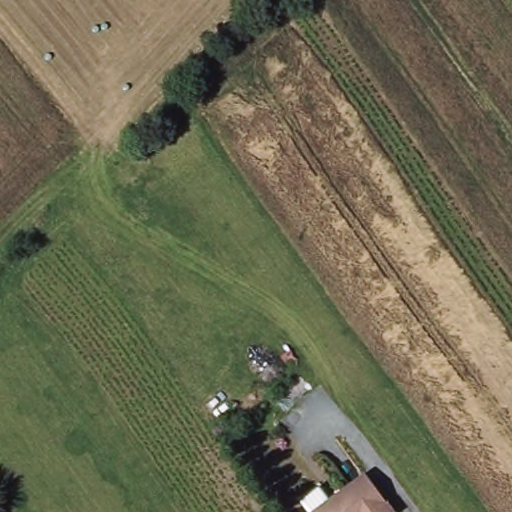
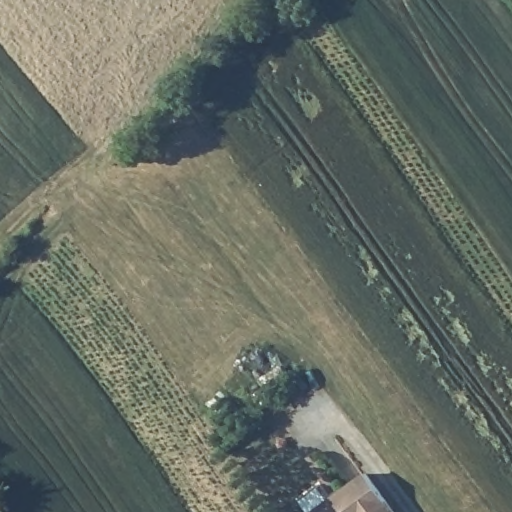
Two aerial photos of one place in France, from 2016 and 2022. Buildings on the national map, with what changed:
unchanged [(394,512),(312,512),(366,473),(394,512)]

